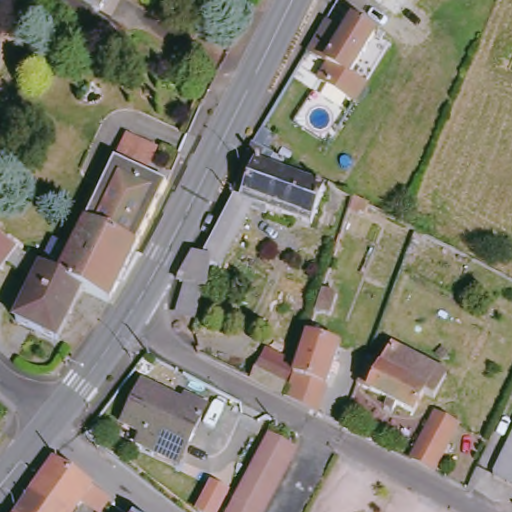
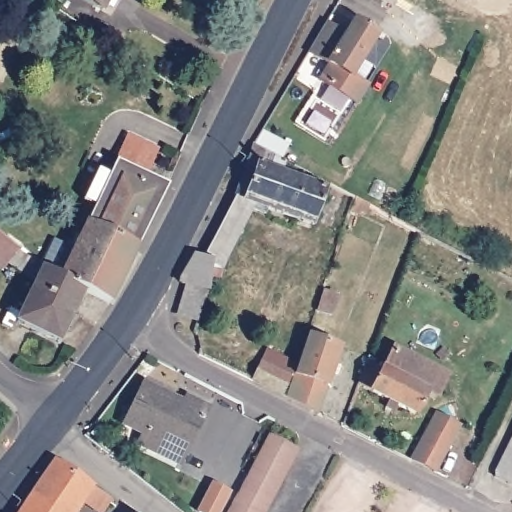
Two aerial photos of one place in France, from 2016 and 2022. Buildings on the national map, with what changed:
unchanged [(107,7),(94,0),(111,0),(107,7)]
unchanged [(397,16),(375,0),(407,0),(397,16)]
unchanged [(356,104),(322,83),(332,67),(309,52),(326,24),(347,36),(354,23),(375,36),(351,78),(366,87),(356,104)]
unchanged [(112,307),(99,301),(84,293),(62,281),(62,279),(86,224),(92,226),(120,165),(130,141),(145,148),(137,164),(167,180),(162,189),(165,190),(155,215),(112,307)]
unchanged [(200,291),(192,318),(175,311),(182,284),(198,257),(207,258),(208,255),(200,253),(230,198),(247,145),(247,144),(282,162),(282,174),(326,191),(313,226),(261,207),(227,259),(214,280),(204,279),(202,291),(200,291)]
unchanged [(364,206),(360,215),(356,213),(355,216),(344,211),(349,198),(364,206)]
unchanged [(62,279),(62,281),(84,293),(57,346),(19,326),(37,285),(10,266),(2,274),(0,273),(0,234),(21,251),(62,279)]
unchanged [(322,291),(338,297),(332,316),(316,311),(322,291)]
unchanged [(307,336),(337,348),(317,413),(287,397),(307,336)]
unchanged [(379,359),(376,365),(386,370),(398,347),(451,375),(439,399),(429,395),(419,414),(362,384),(372,356),(379,359)]
unchanged [(268,351),(295,364),(280,394),(279,393),(253,381),(268,351)]
unchanged [(181,404),(184,398),(204,407),(179,463),(140,445),(145,433),(127,425),(143,387),(181,404)]
unchanged [(435,414),(457,425),(435,471),(412,460),(435,414)]
unchanged [(273,512),(236,512),(262,461),(277,433),(307,449),(273,512)]
unchanged [(499,472),(512,445),(512,479),(499,472)]
unchanged [(97,490),(117,503),(108,512),(97,512),(87,505),(82,512),(30,512),(61,465),(97,490)]
unchanged [(227,512),(208,512),(219,490),(234,498),(227,512)]

